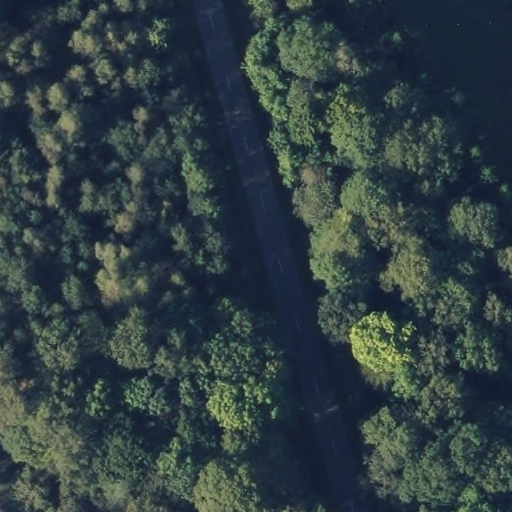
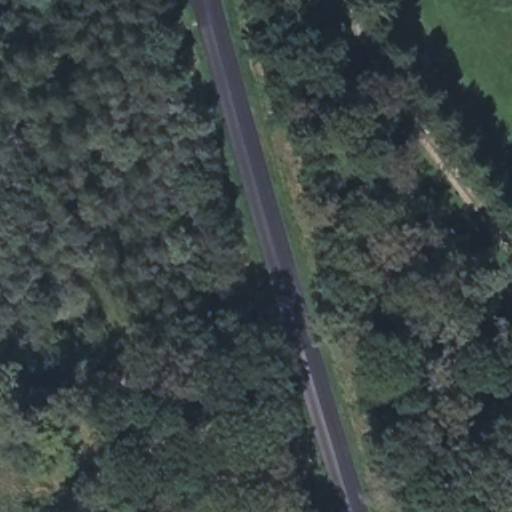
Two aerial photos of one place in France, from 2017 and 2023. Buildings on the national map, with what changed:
[]

